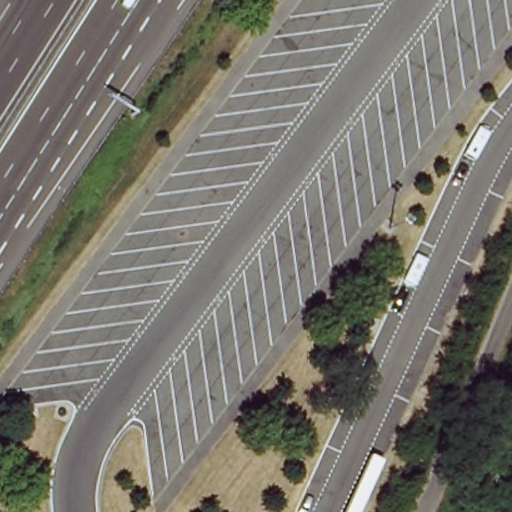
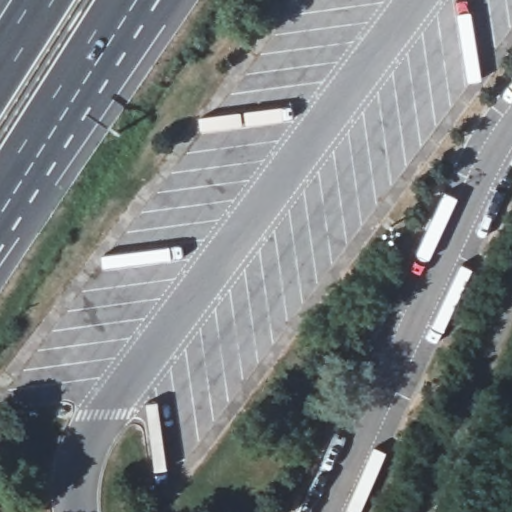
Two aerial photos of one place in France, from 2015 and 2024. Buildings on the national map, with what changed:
[]

